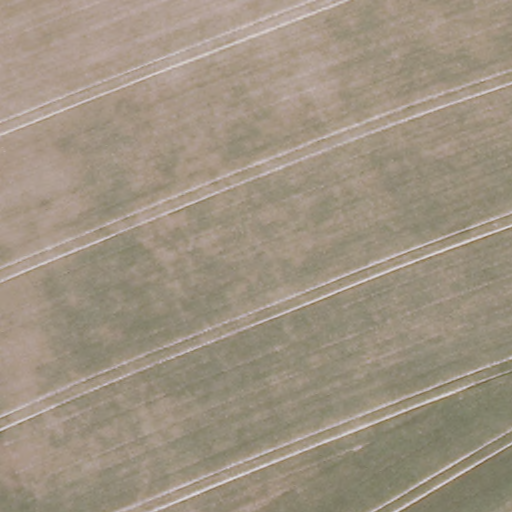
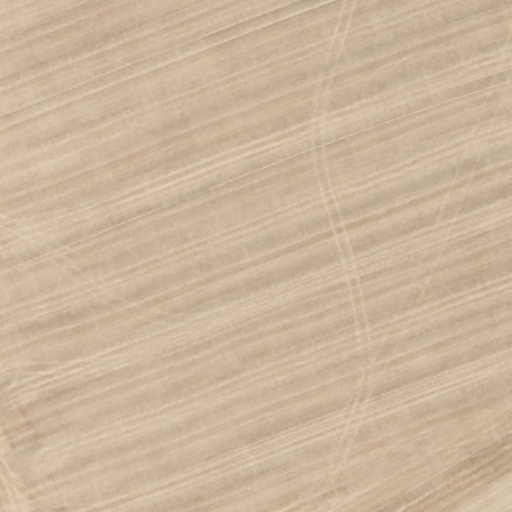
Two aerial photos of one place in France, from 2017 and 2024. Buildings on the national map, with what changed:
[]

